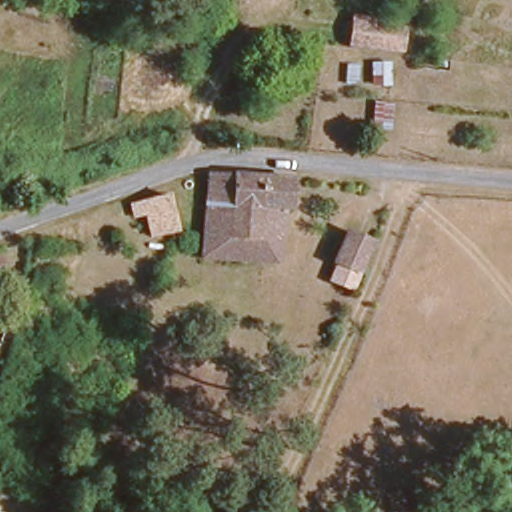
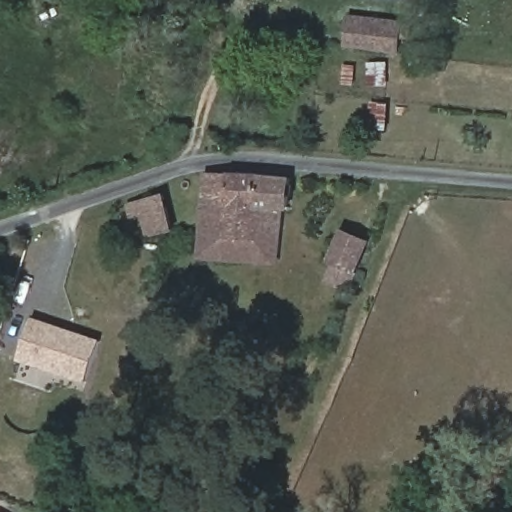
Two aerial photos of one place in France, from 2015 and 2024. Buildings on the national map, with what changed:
unchanged [(169,13),(139,11),(141,0),(171,0),(169,13)]
unchanged [(402,18),(398,52),(342,46),(346,13),(402,18)]
unchanged [(387,102),(386,130),(365,125),(370,99),(387,102)]
unchanged [(260,173),(256,229),(229,226),(230,207),(203,205),(206,169),(209,168),(260,173)]
unchanged [(228,258),(200,257),(203,205),(230,207),(229,226),(256,229),(260,173),(290,176),(287,207),(281,207),(277,250),(276,250),(276,260),(228,258)]
unchanged [(172,223),(146,229),(141,210),(130,212),(128,203),(127,199),(164,189),(172,223)]
unchanged [(328,278),(334,262),(331,260),(339,238),(341,230),(365,240),(363,247),(348,285),(328,278)]
unchanged [(1,274),(0,274),(0,272),(1,274)]
new [(18,360),(33,317),(101,340),(86,383),(18,360)]

